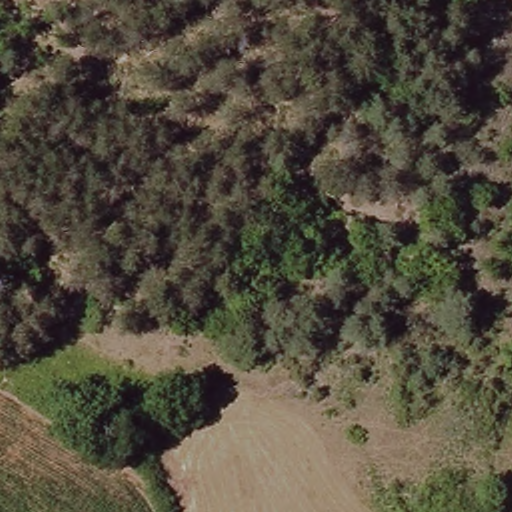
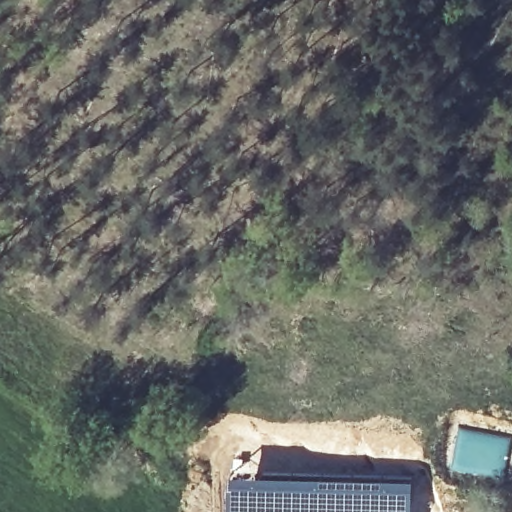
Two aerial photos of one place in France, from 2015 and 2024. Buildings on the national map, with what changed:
new [(232,468),(258,471),(414,476),(412,512),(230,512),(232,468)]

